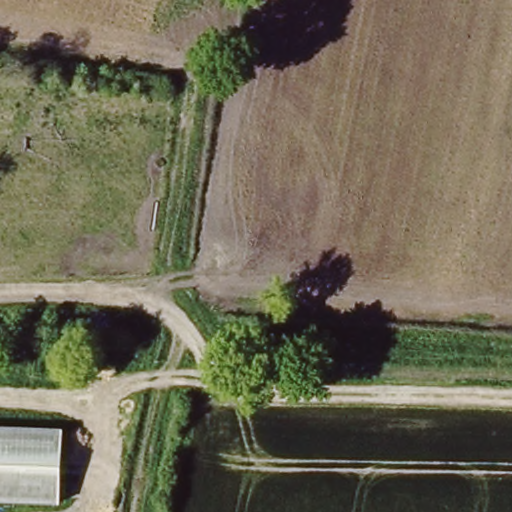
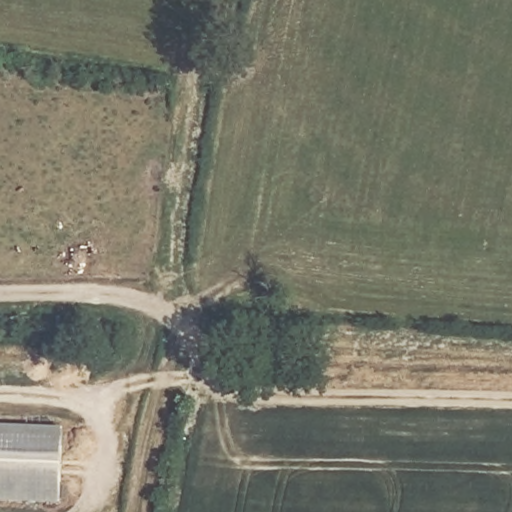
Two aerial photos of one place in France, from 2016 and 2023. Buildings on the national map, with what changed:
unchanged [(66,432),(64,504),(0,504),(0,430),(66,432)]

